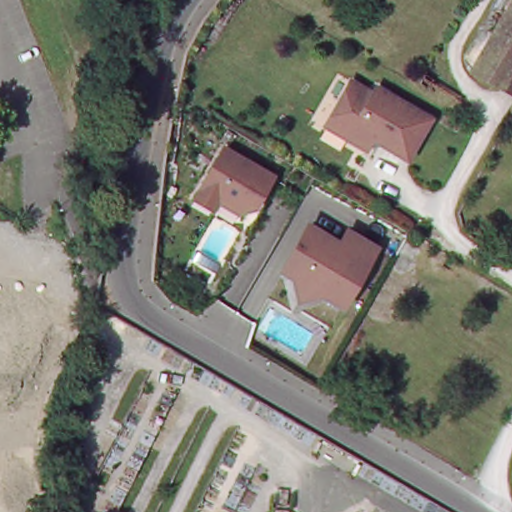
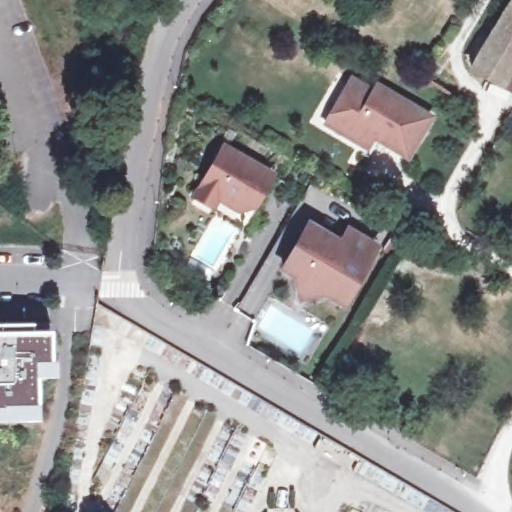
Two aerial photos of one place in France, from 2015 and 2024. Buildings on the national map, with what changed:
unchanged [(470,72),(512,4),(512,73),(502,89),(470,72)]
unchanged [(512,73),(512,94),(502,89),(512,73)]
unchanged [(365,147),(345,136),(324,123),(330,112),(350,78),(372,91),(375,85),(430,116),(405,156),(376,140),(371,136),(365,147)]
unchanged [(217,145),(266,174),(247,205),(239,207),(219,195),(210,198),(205,205),(188,195),(217,145)]
unchanged [(321,296),(298,302),(292,279),(282,273),(307,229),(328,241),(340,247),(347,235),(373,250),(347,297),(340,308),(321,296)]
new [(33,323),(30,330),(51,330),(50,360),(56,361),(55,376),(39,376),(38,420),(0,420),(0,323),(33,323)]

